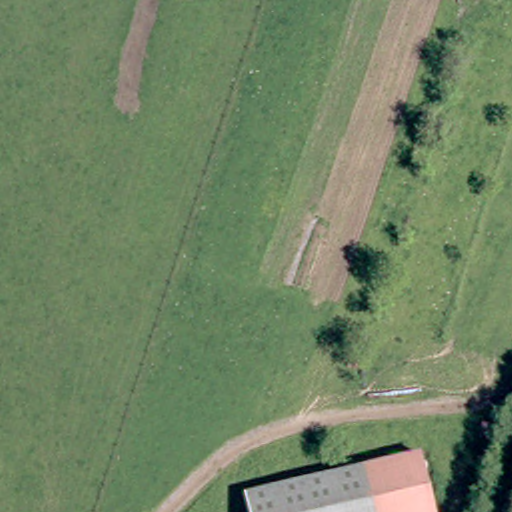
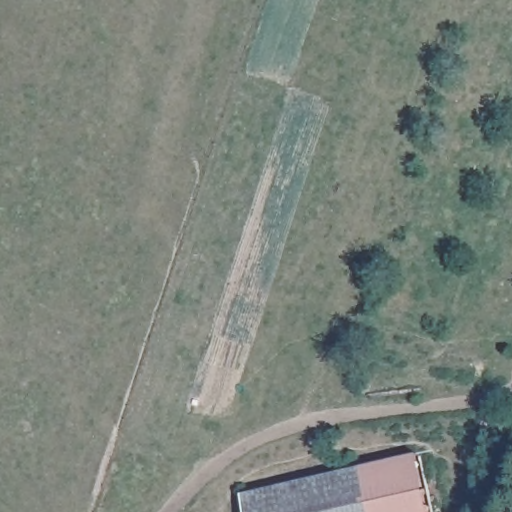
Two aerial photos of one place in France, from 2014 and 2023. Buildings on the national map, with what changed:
unchanged [(248,512),(245,497),(419,457),(432,512),(248,512)]

